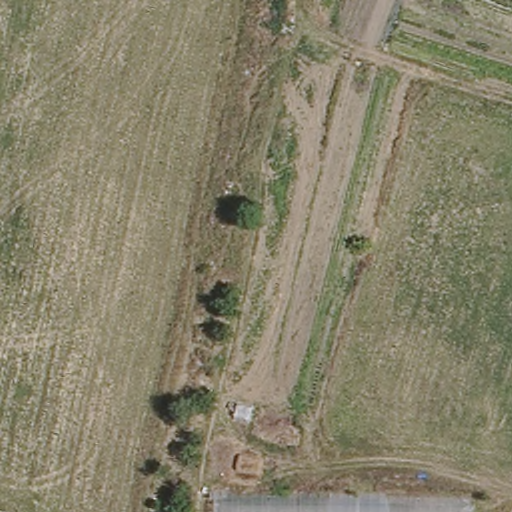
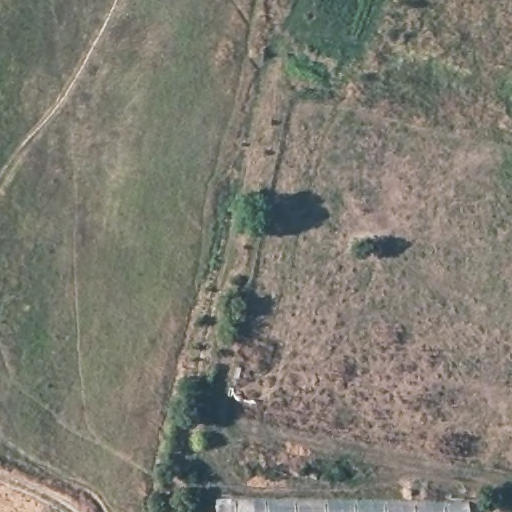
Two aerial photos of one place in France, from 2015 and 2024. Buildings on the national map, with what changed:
unchanged [(212,512),(212,497),(468,494),(470,512),(212,512)]

